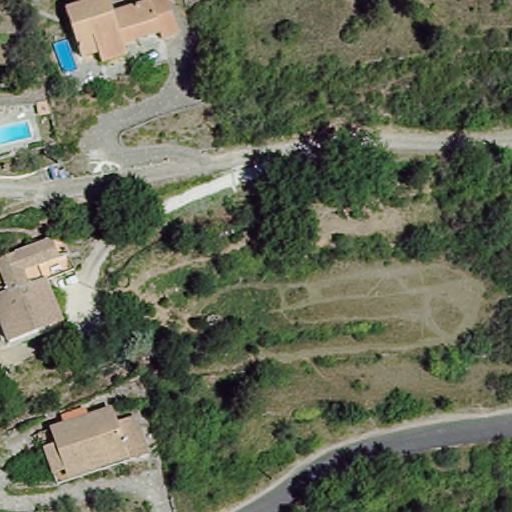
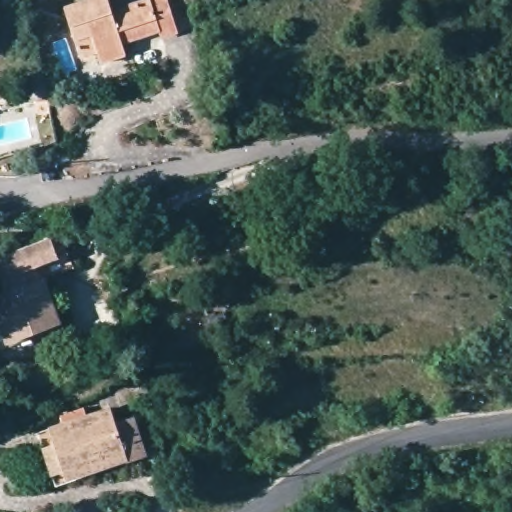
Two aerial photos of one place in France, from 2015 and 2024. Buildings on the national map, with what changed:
unchanged [(110,71),(105,58),(88,64),(71,18),(113,4),(119,21),(156,9),(154,4),(167,0),(171,0),(186,40),(168,48),(166,40),(129,52),(133,62),(110,71)]
unchanged [(0,250),(40,231),(50,227),(59,245),(49,249),(30,259),(35,272),(57,315),(8,338),(0,322),(0,250)]
unchanged [(110,410),(123,458),(65,475),(51,426),(110,410)]
unchanged [(65,475),(123,458),(126,468),(51,490),(36,431),(51,426),(65,475)]

